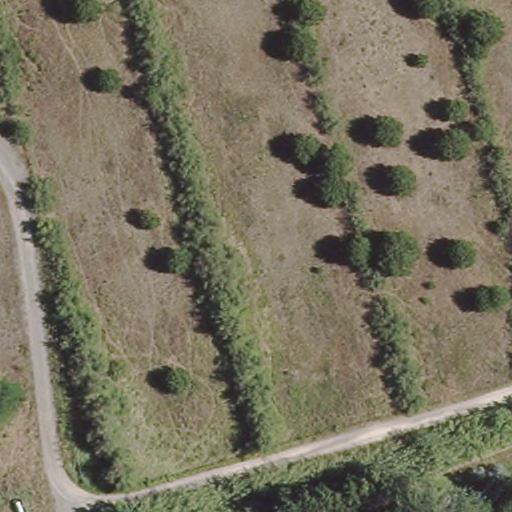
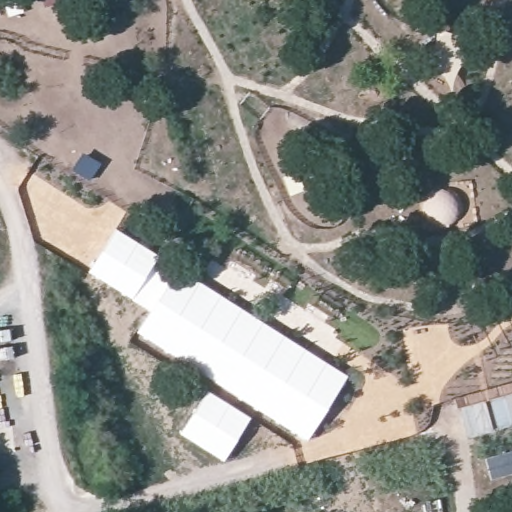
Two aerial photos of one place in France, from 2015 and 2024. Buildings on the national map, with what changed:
new [(116,228),(160,255),(132,298),(88,270),(116,228)]
new [(160,255),(348,375),(308,440),(202,372),(137,332),(150,310),(132,298),(160,255)]
new [(207,390),(252,416),(225,461),(180,433),(207,390)]

